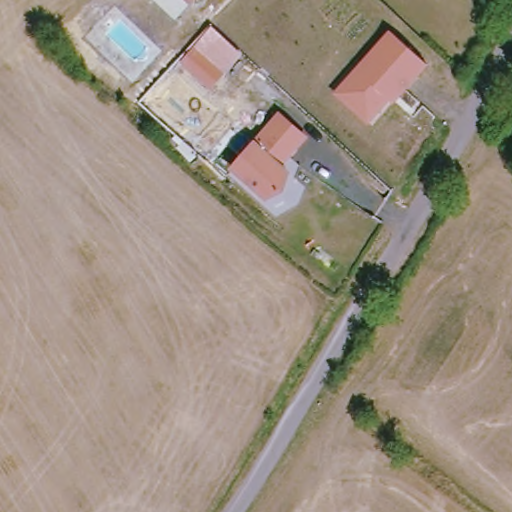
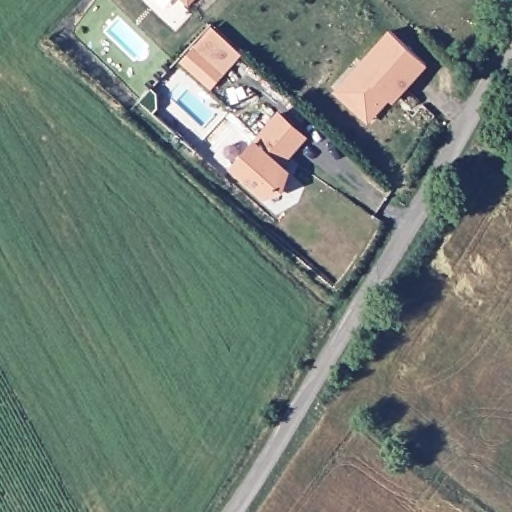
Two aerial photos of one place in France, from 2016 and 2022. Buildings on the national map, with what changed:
unchanged [(186,0),(195,0),(191,4),(186,0)]
unchanged [(241,54),(211,88),(181,61),(211,27),(241,54)]
unchanged [(429,67),(395,106),(391,103),(369,126),(334,96),(391,32),(429,67)]
unchanged [(303,139),(278,168),(286,175),(279,192),(263,201),(229,170),(277,116),(303,139)]

